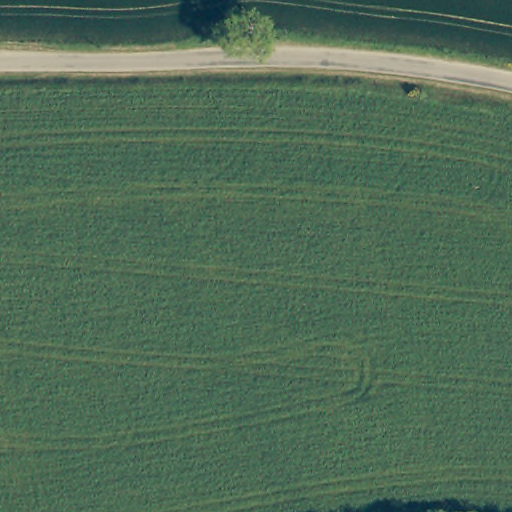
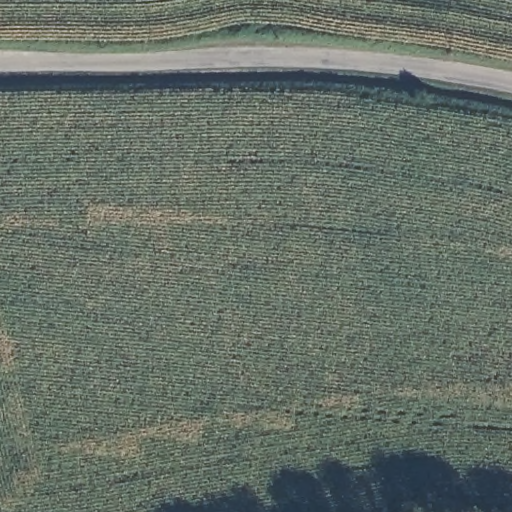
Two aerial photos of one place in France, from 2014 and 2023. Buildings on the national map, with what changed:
[]

